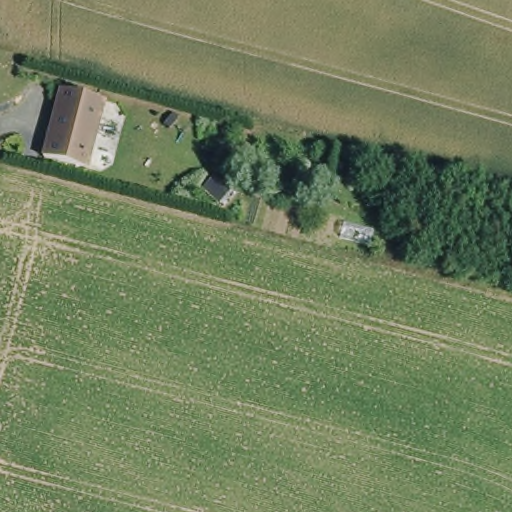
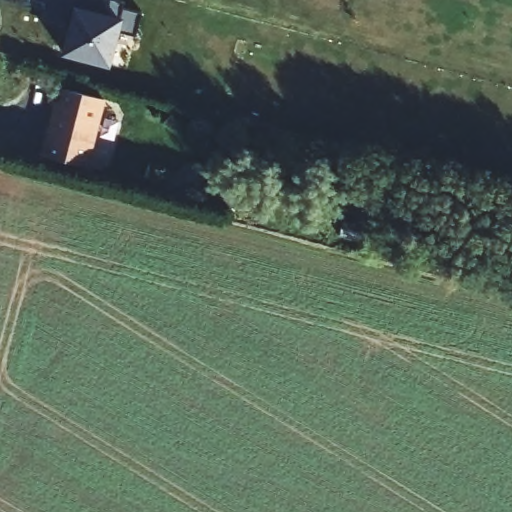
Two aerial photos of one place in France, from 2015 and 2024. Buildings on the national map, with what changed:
new [(123,2),(122,7),(141,12),(135,36),(120,32),(110,69),(60,56),(75,0),(114,0),(123,2)]
unchanged [(59,84),(102,96),(84,164),(40,152),(59,84)]

